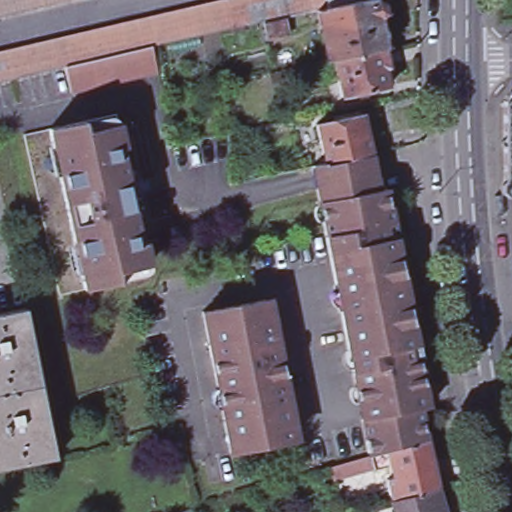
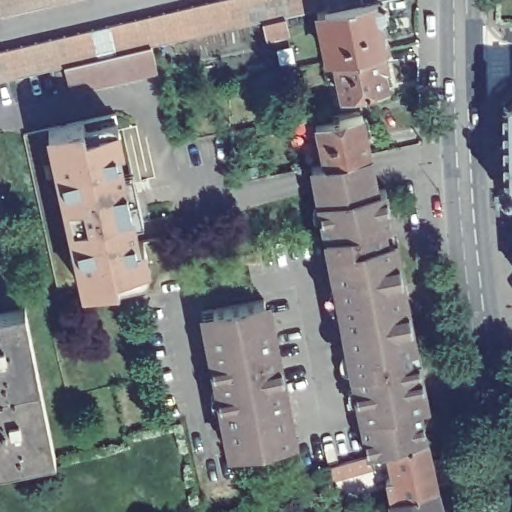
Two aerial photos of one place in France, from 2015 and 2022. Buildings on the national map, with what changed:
unchanged [(38,0),(0,9),(0,0),(38,0)]
unchanged [(74,92),(67,65),(0,81),(0,50),(211,0),(328,0),(328,4),(185,36),(155,44),(161,72),(147,75),(132,79),(117,82),(103,85),(88,89),(74,92)]
unchanged [(366,0),(386,0),(389,15),(384,16),(390,46),(386,47),(337,58),(336,52),(328,54),(318,10),(330,8),(366,0)]
unchanged [(328,4),(328,0),(366,0),(330,8),(328,4)]
unchanged [(288,16),(292,31),(270,37),(266,21),(288,16)]
unchanged [(335,58),(337,58),(386,47),(390,65),(385,66),(390,86),(342,95),(335,58)]
unchanged [(512,186),(505,186),(505,102),(512,93),(512,186)]
unchanged [(130,147),(137,180),(141,197),(151,243),(155,242),(162,274),(70,295),(35,133),(127,113),(135,146),(130,147)]
unchanged [(371,153),(326,162),(318,124),(364,114),(365,118),(369,116),(372,132),(368,134),(372,153),(371,153)]
unchanged [(376,176),(318,188),(313,164),(326,162),(371,153),(376,176)]
unchanged [(413,319),(427,386),(360,399),(320,202),(318,188),(376,176),(379,190),(387,189),(391,211),(394,223),(387,224),(390,237),(396,235),(408,294),(402,296),(405,308),(411,307),(413,319)]
unchanged [(26,302),(42,377),(0,387),(0,307),(26,302)]
unchanged [(291,426),(295,442),(233,455),(205,315),(266,303),(270,318),(275,317),(281,349),(274,351),(276,363),(283,362),(287,380),(296,425),(291,426)]
unchanged [(0,464),(0,387),(42,377),(58,453),(0,464)]
unchanged [(427,386),(430,404),(422,405),(422,404),(363,417),(360,399),(427,386)]
unchanged [(346,474),(343,462),(370,454),(363,417),(422,404),(422,405),(428,438),(389,449),(374,453),(377,464),(346,474)]
unchanged [(430,438),(437,467),(435,467),(440,486),(393,499),(388,478),(396,476),(389,449),(428,438),(430,438)]
unchanged [(393,499),(440,486),(448,512),(397,512),(393,499)]

